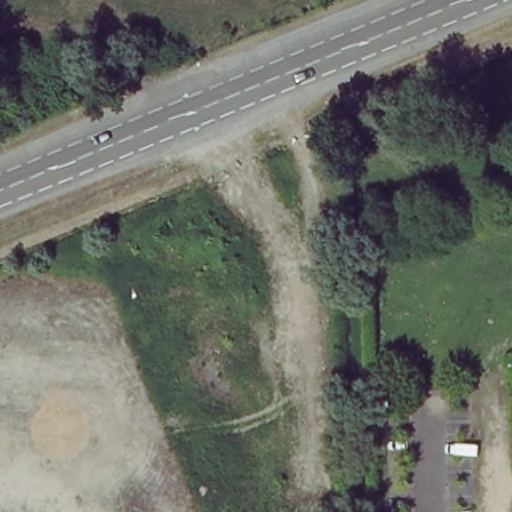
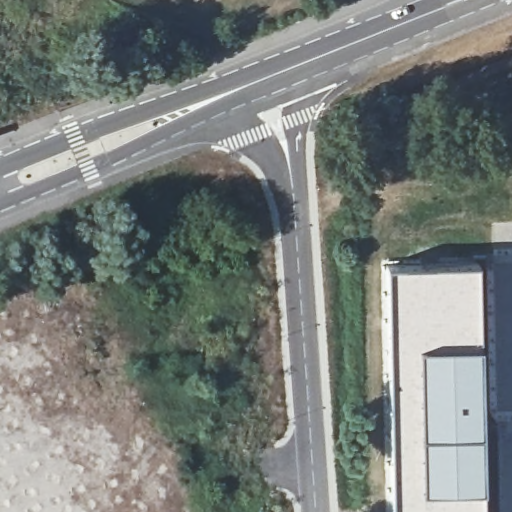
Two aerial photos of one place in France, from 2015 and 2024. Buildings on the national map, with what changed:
new [(482,333),(485,512),(389,512),(389,468),(387,423),(389,346),(386,264),(479,262),(482,333)]

